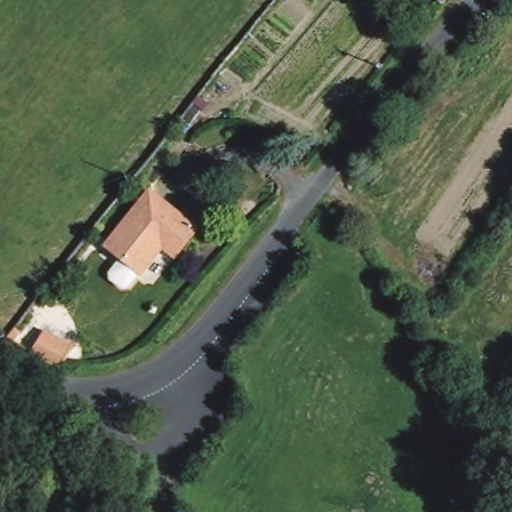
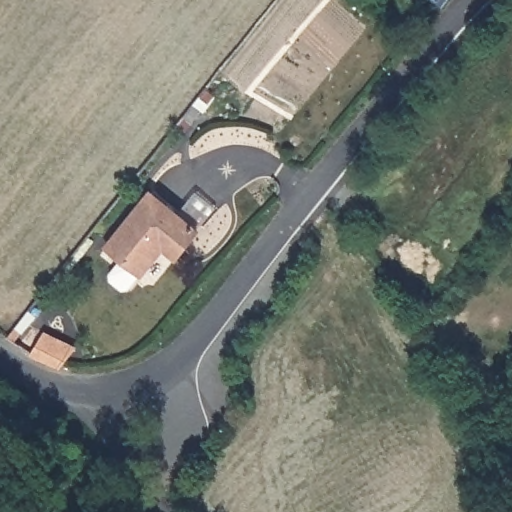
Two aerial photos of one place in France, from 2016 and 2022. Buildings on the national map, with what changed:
unchanged [(446,6),(437,0),(451,0),(446,6)]
unchanged [(197,227),(177,256),(164,246),(141,275),(122,260),(126,255),(111,243),(152,192),(197,227)]
unchanged [(23,333),(16,341),(8,336),(15,328),(23,333)]
unchanged [(76,346),(61,365),(33,352),(46,332),(76,346)]

